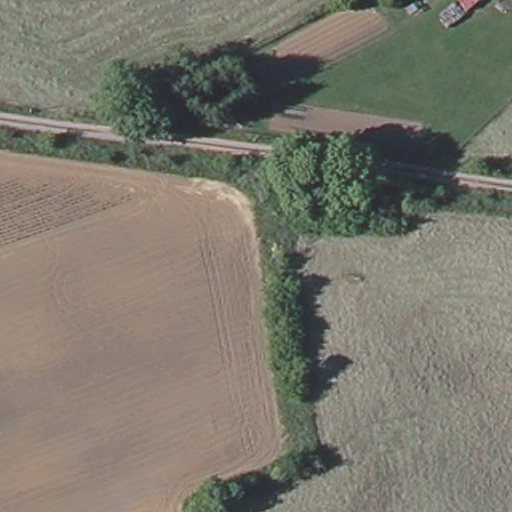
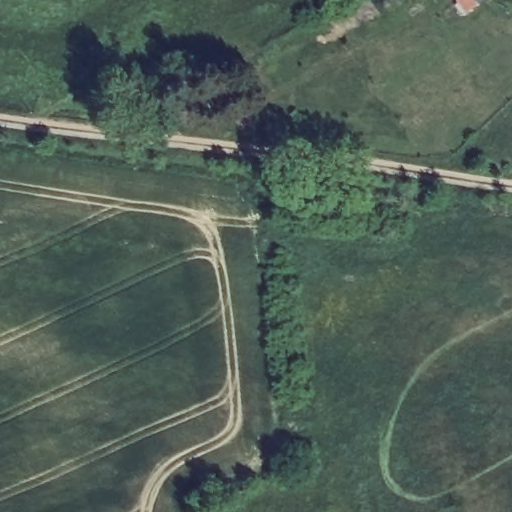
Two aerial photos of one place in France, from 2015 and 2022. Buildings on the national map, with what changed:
[]

